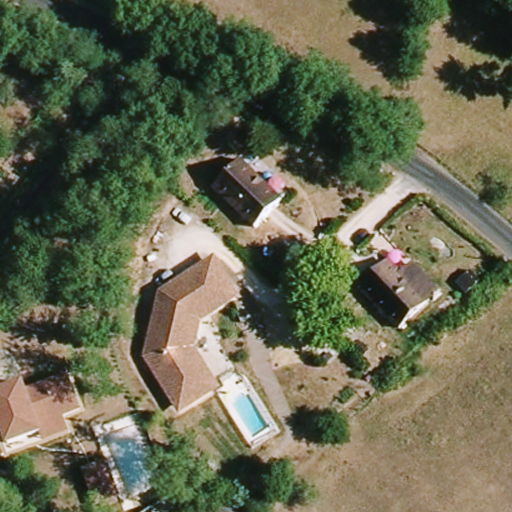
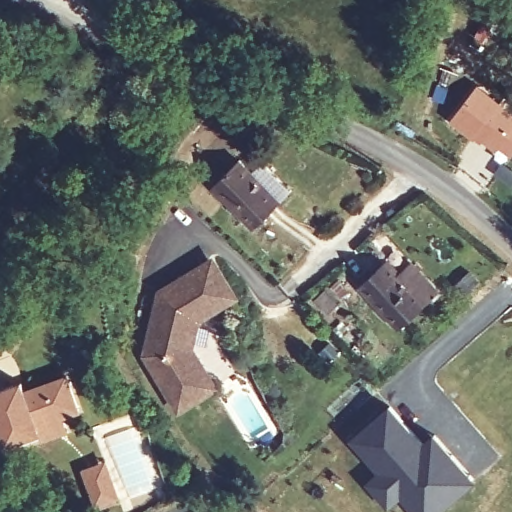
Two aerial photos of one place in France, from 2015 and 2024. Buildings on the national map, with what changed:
new [(512,111),(512,154),(500,145),(498,151),(483,140),(482,143),(474,138),(474,140),(451,122),(479,85),(512,111)]
unchanged [(239,160),(281,201),(255,227),(213,186),(239,160)]
unchanged [(402,275),(414,263),(440,292),(399,329),(360,286),(389,260),(402,275)]
unchanged [(154,292),(169,283),(206,263),(226,296),(188,318),(181,348),(203,387),(169,406),(149,372),(138,355),(141,345),(145,330),(154,292)]
unchanged [(71,374),(84,410),(65,418),(68,427),(42,434),(7,445),(3,435),(0,436),(0,388),(23,380),(25,390),(71,374)]
new [(478,481),(441,512),(414,512),(402,497),(389,508),(368,483),(379,472),(352,440),(391,405),(423,442),(435,432),(478,481)]
unchanged [(123,498),(96,509),(81,469),(109,459),(123,498)]

